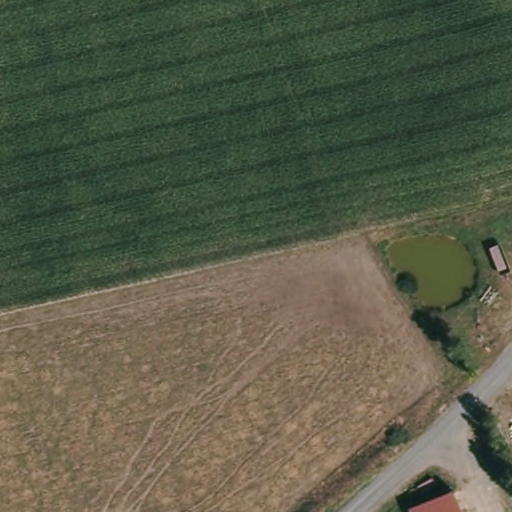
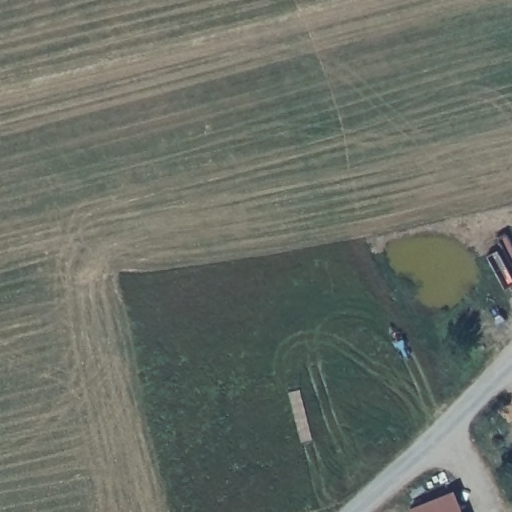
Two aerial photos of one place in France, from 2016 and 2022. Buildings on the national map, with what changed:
unchanged [(454,512),(406,512),(406,510),(448,493),(454,512)]

